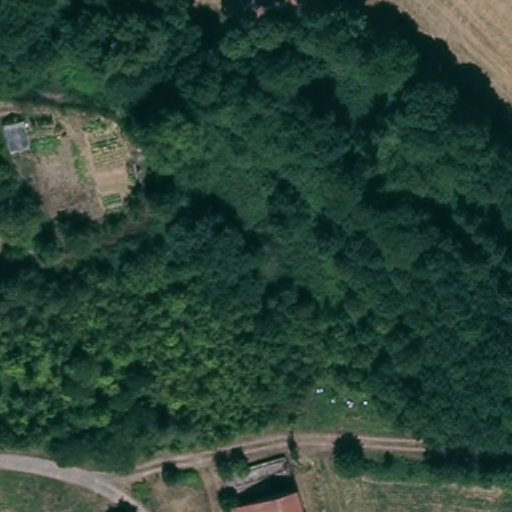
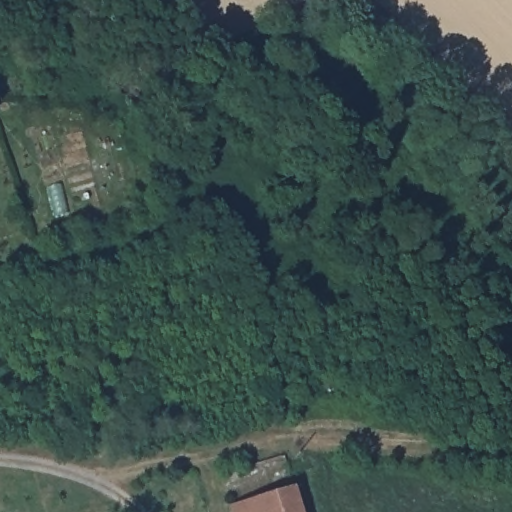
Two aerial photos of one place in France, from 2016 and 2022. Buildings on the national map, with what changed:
unchanged [(284,473),(288,472),(300,512),(229,512),(219,478),(238,472),(280,460),(284,473)]

